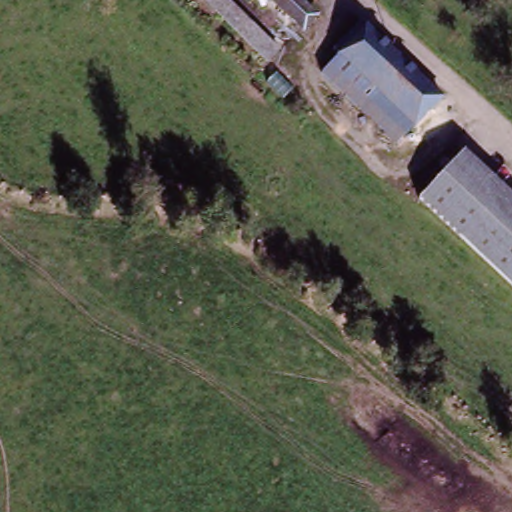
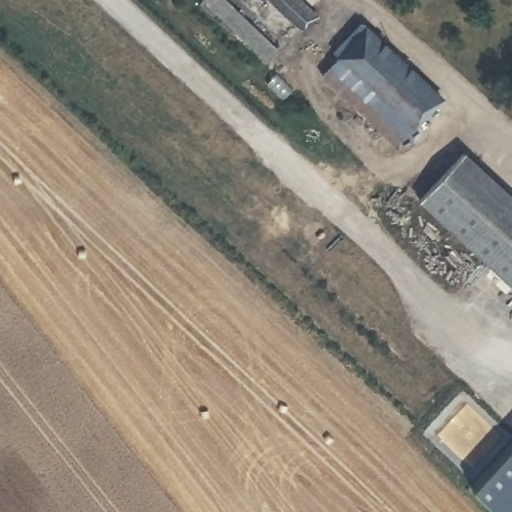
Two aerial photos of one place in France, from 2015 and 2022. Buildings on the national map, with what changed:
unchanged [(267,59),(204,0),(252,0),(290,36),(267,59)]
unchanged [(268,0),(291,0),(310,18),(300,29),(268,0)]
unchanged [(366,85),(332,52),(360,22),(438,97),(409,127),(366,85)]
unchanged [(311,74),(332,52),(366,85),(409,127),(390,147),(311,74)]
unchanged [(512,200),(512,290),(418,202),(462,154),(512,200)]
new [(472,487),(512,443),(512,512),(499,512),(472,487)]

